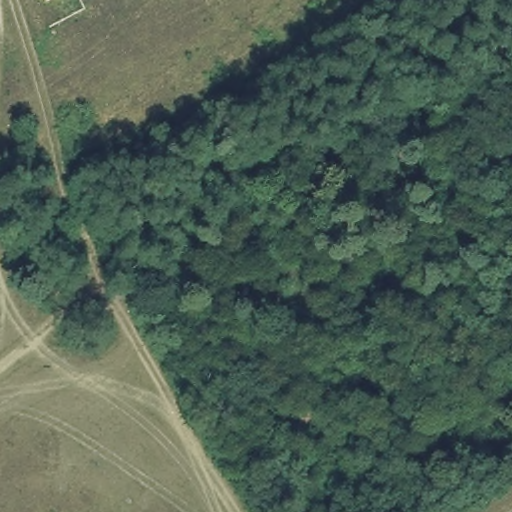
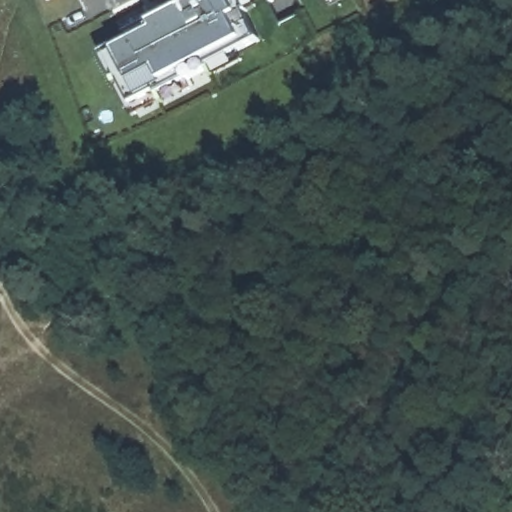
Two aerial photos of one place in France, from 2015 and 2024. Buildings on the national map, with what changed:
new [(255,5),(245,13),(259,40),(223,59),(219,50),(204,59),(206,68),(185,79),(188,89),(131,116),(112,79),(99,54),(113,50),(153,31),(149,24),(178,10),(172,0),(252,0),(255,5)]
unchanged [(329,6),(327,0),(342,0),(329,6)]

